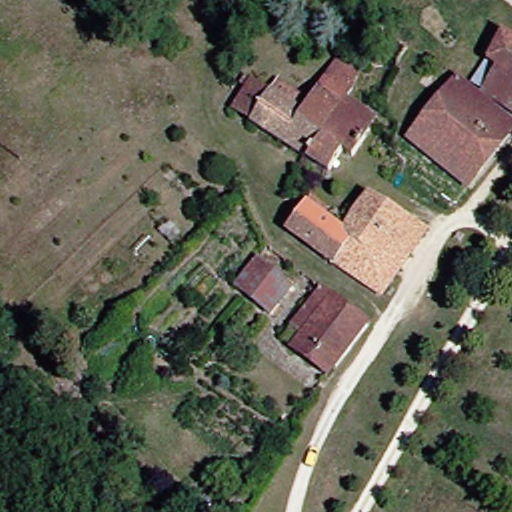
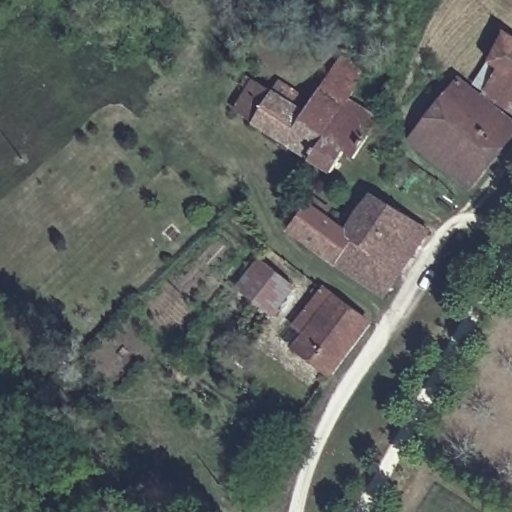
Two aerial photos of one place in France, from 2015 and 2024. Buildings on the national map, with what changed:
unchanged [(498,64),(485,56),(492,46),(504,29),(512,34),(512,74),(498,64)]
unchanged [(230,95),(251,68),(271,80),(308,105),(350,49),(371,66),(342,112),(315,154),(251,110),(230,95)]
unchanged [(479,85),(498,64),(512,74),(512,108),(479,85)]
unchanged [(416,144),(460,83),(512,119),(512,139),(477,187),(416,144)]
unchanged [(342,112),(374,134),(360,156),(353,152),(338,172),(315,154),(342,112)]
unchanged [(368,280),(335,260),(348,237),(355,229),(375,196),(409,217),(430,231),(406,270),(390,295),(368,280)]
unchanged [(348,237),(335,260),(287,225),(305,199),(355,229),(348,237)]
unchanged [(237,288),(260,254),(277,264),(298,278),(275,312),(246,294),(237,288)]
unchanged [(370,314),(332,372),(302,352),(314,333),(302,325),(328,285),(370,314)]

